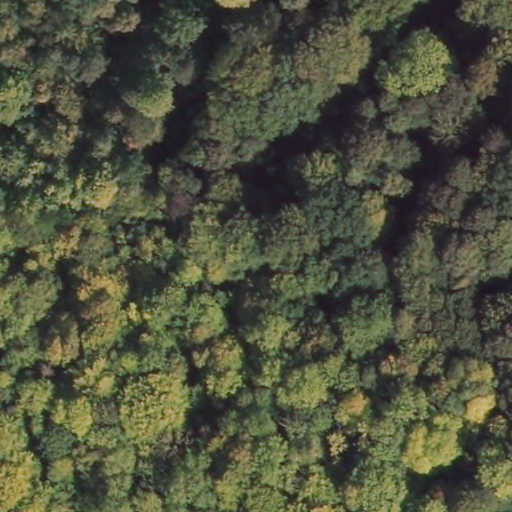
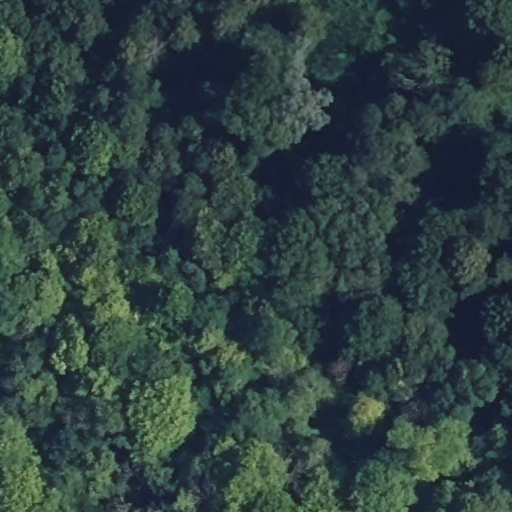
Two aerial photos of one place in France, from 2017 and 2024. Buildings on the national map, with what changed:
[]

